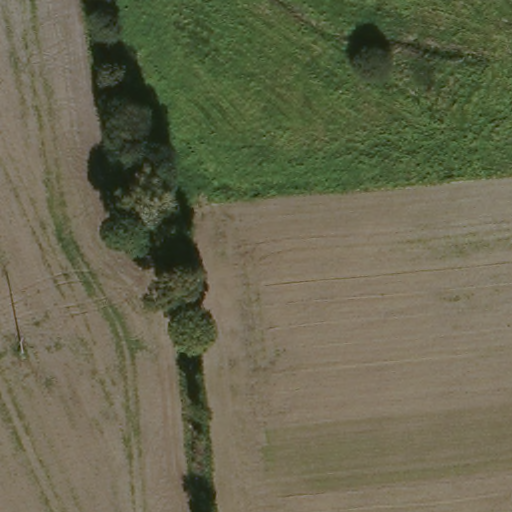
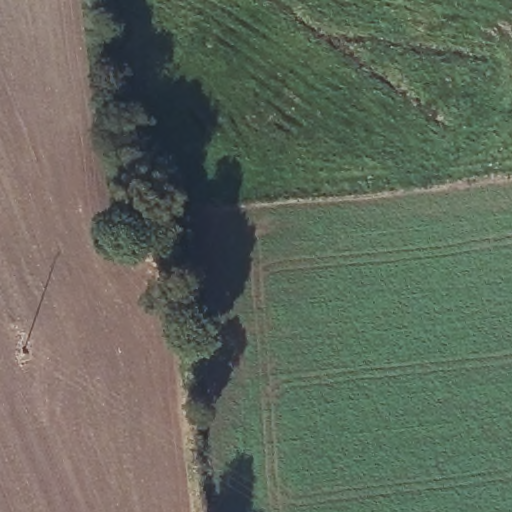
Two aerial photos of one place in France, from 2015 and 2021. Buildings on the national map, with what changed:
[]

